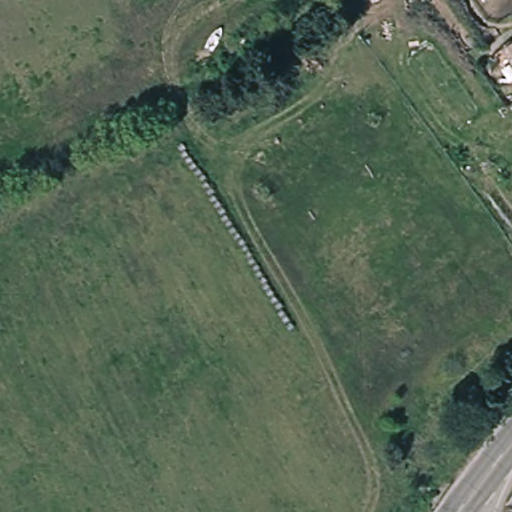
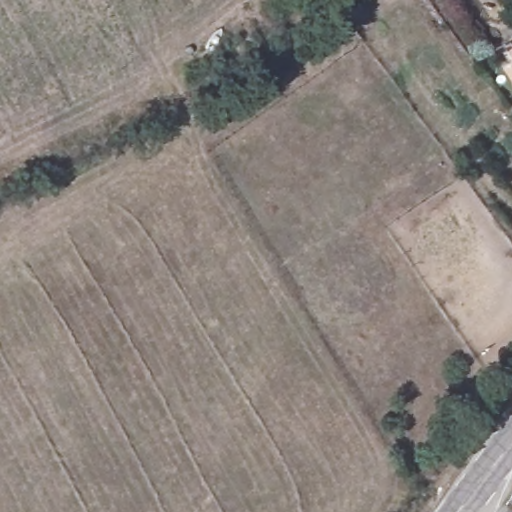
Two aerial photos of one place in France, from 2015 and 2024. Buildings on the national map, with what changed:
unchanged [(512,40),(512,84),(492,51),(512,40)]

